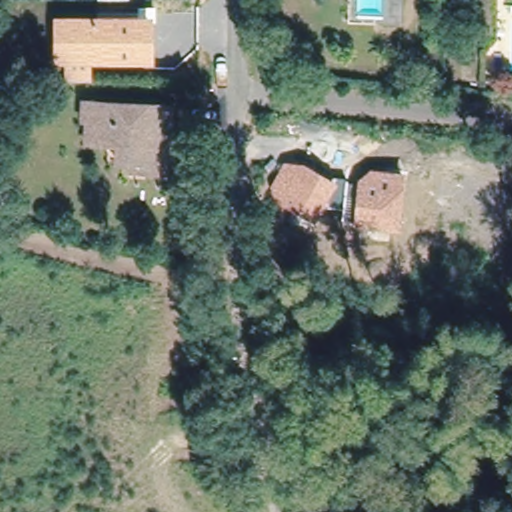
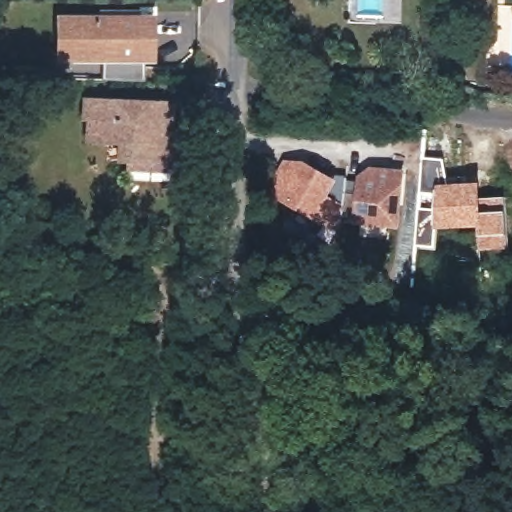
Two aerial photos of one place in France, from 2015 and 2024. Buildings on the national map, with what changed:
unchanged [(153,14),(154,63),(92,63),(92,78),(64,77),(64,61),(53,60),(54,14),(153,14)]
unchanged [(482,32),(481,65),(470,64),(471,33),(482,32)]
unchanged [(126,163),(126,149),(128,138),(91,135),(95,103),(83,103),(85,89),(154,94),(175,96),(172,124),(171,150),(170,164),(126,163)]
new [(421,156),(443,158),(447,182),(480,180),(482,197),(506,195),(509,249),(478,250),(477,227),(435,229),(435,248),(413,246),(421,156)]
unchanged [(304,160),(332,178),(333,173),(348,175),(348,177),(358,177),(358,175),(371,165),(405,168),(399,225),(352,219),(352,216),(341,215),(341,207),(323,204),(314,219),(284,204),(281,209),(263,198),(271,181),(284,159),(304,160)]

